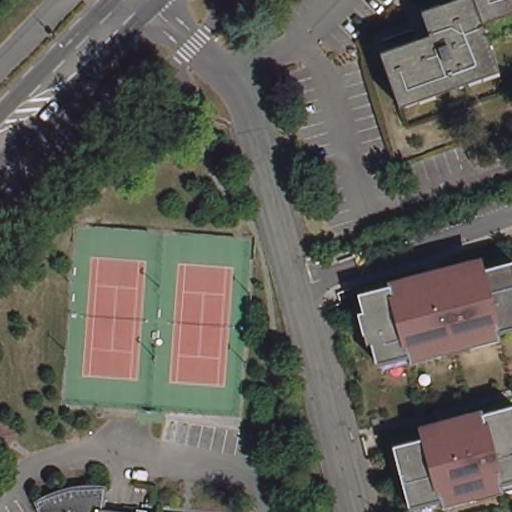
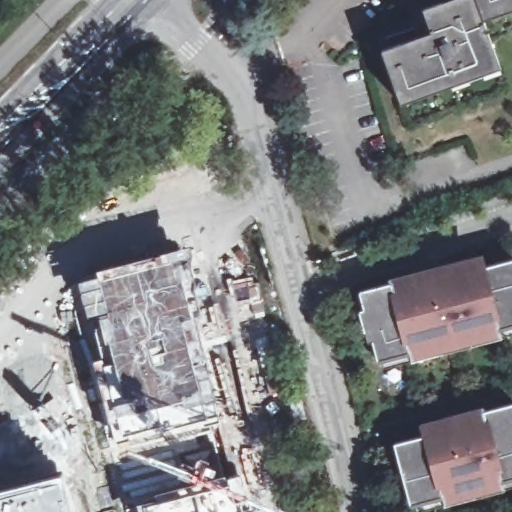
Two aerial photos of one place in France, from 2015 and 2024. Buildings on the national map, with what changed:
unchanged [(423,5),(435,0),(512,0),(512,6),(485,16),(502,64),(401,100),(382,46),(432,27),(423,5)]
new [(97,274),(96,269),(186,246),(197,294),(192,296),(208,361),(216,407),(212,407),(213,413),(204,417),(205,420),(199,422),(196,413),(199,412),(197,407),(159,411),(157,407),(133,412),(130,399),(114,405),(112,397),(122,394),(97,313),(88,316),(78,280),(97,274)]
unchanged [(377,364),(360,293),(512,255),(512,328),(377,364)]
unchanged [(512,401),(512,478),(409,512),(393,446),(512,400),(512,401)]
demolished [(0,421),(2,418),(19,432),(7,449),(0,445),(0,421)]
new [(0,486),(64,470),(75,512),(0,512),(0,486)]
new [(231,478),(244,512),(139,512),(137,502),(231,478)]
demolished [(79,506),(114,504),(113,512),(62,512),(79,506)]

